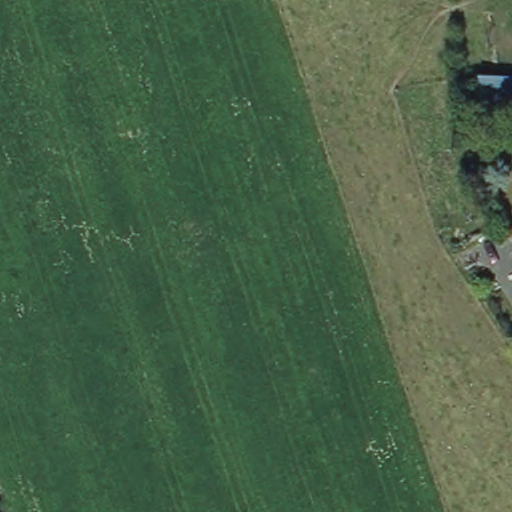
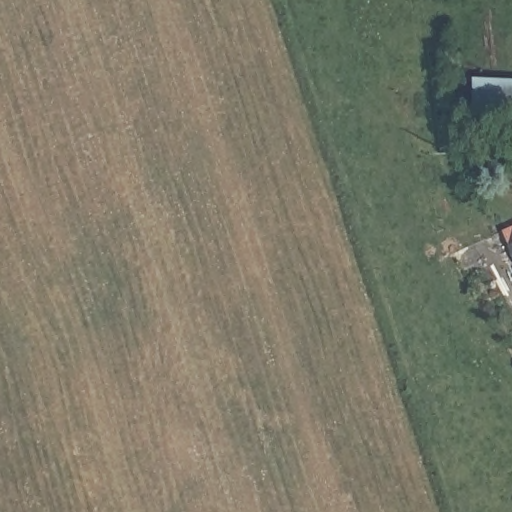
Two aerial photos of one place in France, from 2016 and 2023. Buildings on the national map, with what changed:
unchanged [(512,243),(510,239),(512,238),(512,243)]

